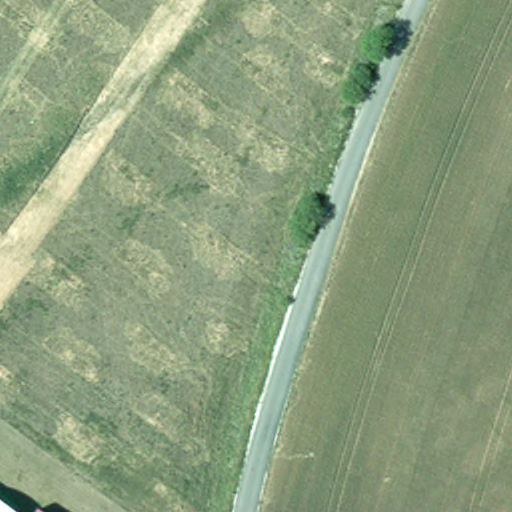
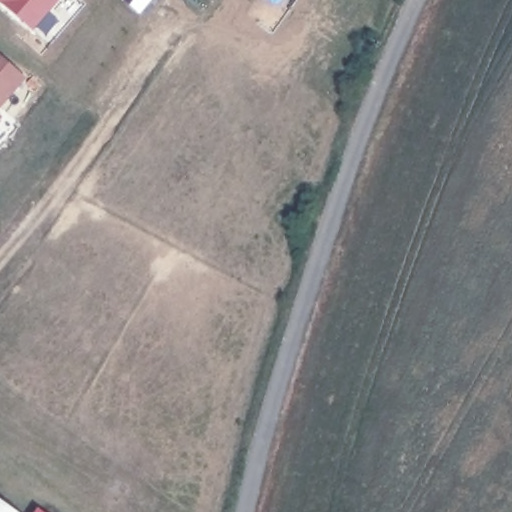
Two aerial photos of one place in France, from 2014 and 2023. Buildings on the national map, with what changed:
new [(33,33),(1,5),(0,5),(0,0),(61,0),(33,33)]
new [(0,111),(0,54),(27,77),(0,111)]
new [(3,117),(0,121),(0,115),(3,117)]

